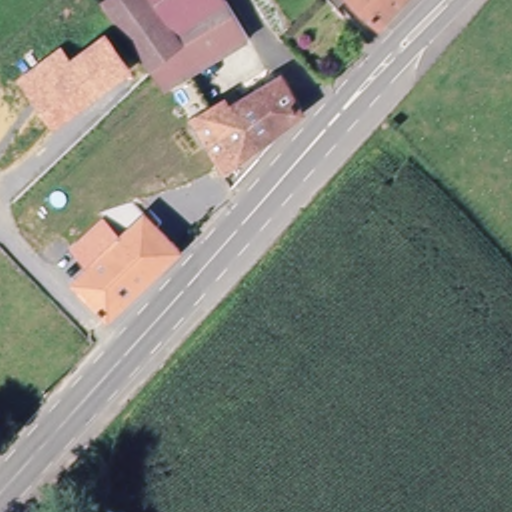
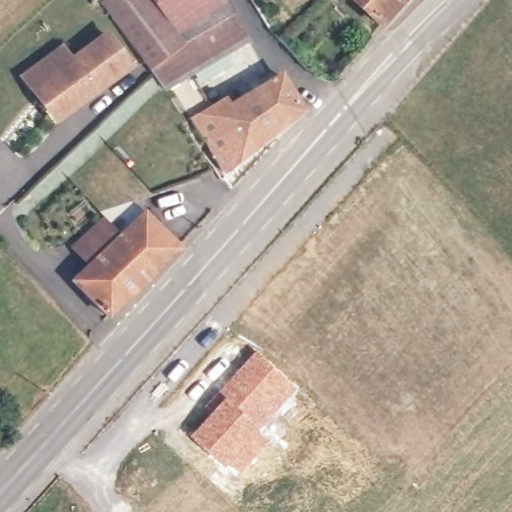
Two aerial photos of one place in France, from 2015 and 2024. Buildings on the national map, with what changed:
unchanged [(167,89),(160,93),(100,6),(109,0),(225,0),(246,34),(184,76),(167,89)]
unchanged [(341,5),(336,0),(346,0),(341,5)]
unchanged [(361,0),(408,0),(386,23),(361,0)]
unchanged [(62,41),(71,54),(105,30),(135,70),(56,129),(16,76),(62,41)]
unchanged [(190,132),(192,130),(213,116),(244,94),(242,89),(257,77),(263,84),(272,75),(298,113),(215,170),(190,132)]
unchanged [(192,130),(167,89),(184,76),(213,116),(192,130)]
unchanged [(101,213),(125,241),(92,271),(68,247),(101,213)]
unchanged [(92,271),(125,241),(151,217),(180,249),(183,252),(109,320),(74,287),(92,271)]
new [(224,398),(218,392),(255,350),(298,388),(261,430),(271,441),(239,474),(192,436),(224,398)]

